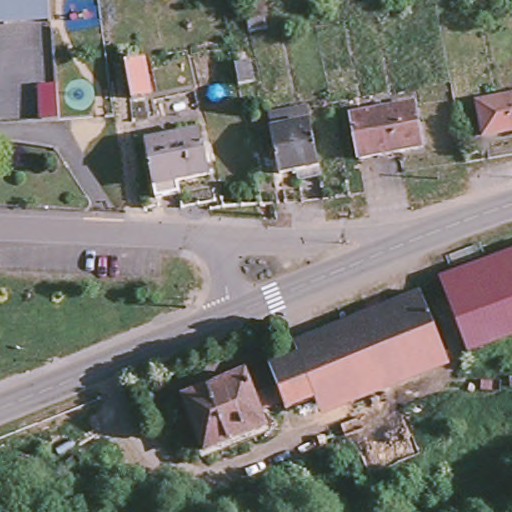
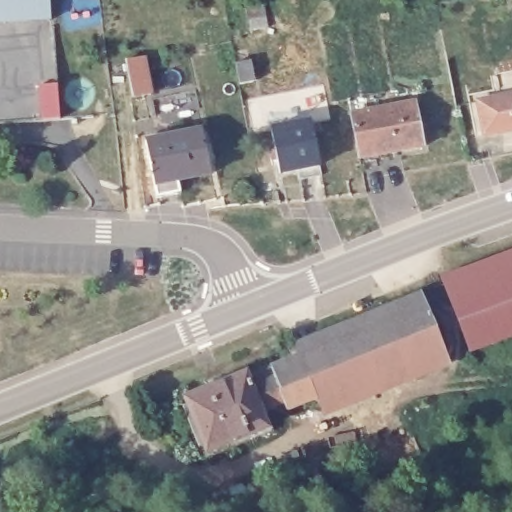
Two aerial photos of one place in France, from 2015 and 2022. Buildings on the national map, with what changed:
unchanged [(5,19),(0,19),(0,0),(4,0),(5,19)]
unchanged [(50,16),(5,19),(4,0),(49,0),(50,16)]
unchanged [(143,59),(150,96),(131,100),(125,62),(143,59)]
unchanged [(249,61),(252,82),(239,85),(235,64),(249,61)]
unchanged [(57,85),(59,120),(41,121),(40,85),(57,85)]
unchanged [(477,100),(512,94),(512,128),(483,134),(477,100)]
unchanged [(415,101),(423,146),(359,159),(350,113),(415,101)]
unchanged [(297,175),(295,166),(278,169),(270,125),(292,120),(290,110),(307,106),(309,117),(320,171),(297,175)]
unchanged [(200,121),(210,165),(177,171),(179,184),(155,189),(144,133),(200,121)]
unchanged [(512,336),(469,352),(442,278),(512,252),(512,336)]
unchanged [(315,395),(287,405),(283,396),(270,365),(396,313),(390,299),(420,287),(443,348),(332,394),(317,400),(315,395)]
unchanged [(185,394),(245,369),(247,374),(270,365),(283,396),(260,405),(264,413),(268,422),(242,433),(207,447),(195,420),(185,394)]

